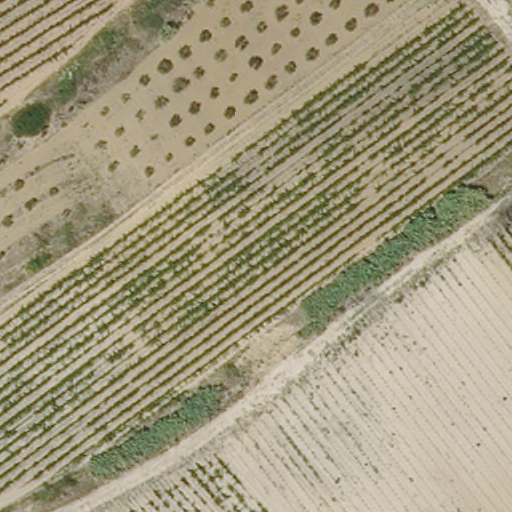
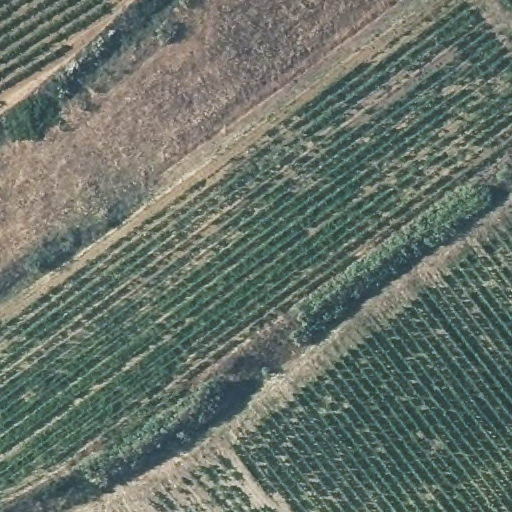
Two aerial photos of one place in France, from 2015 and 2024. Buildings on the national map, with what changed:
[]

